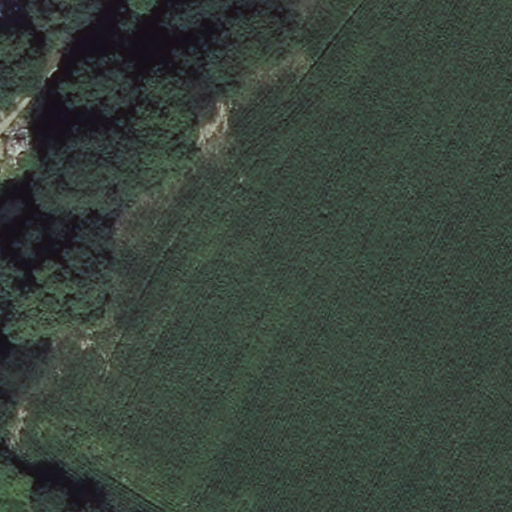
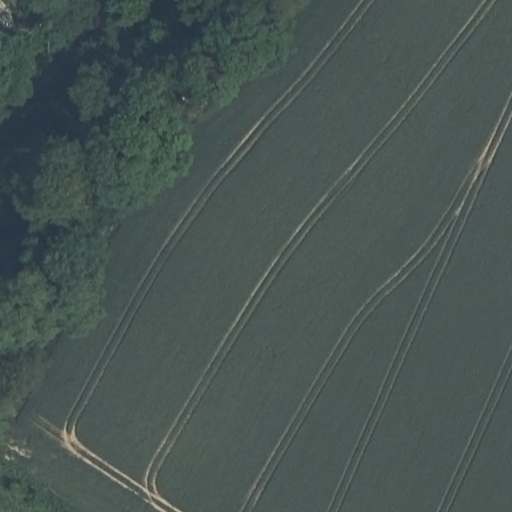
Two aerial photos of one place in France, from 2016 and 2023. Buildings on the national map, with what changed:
[]

